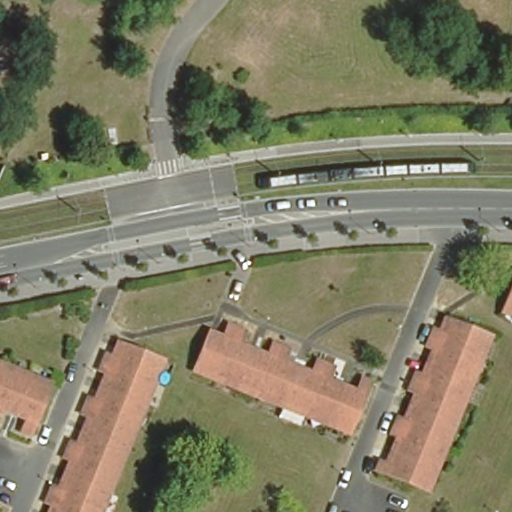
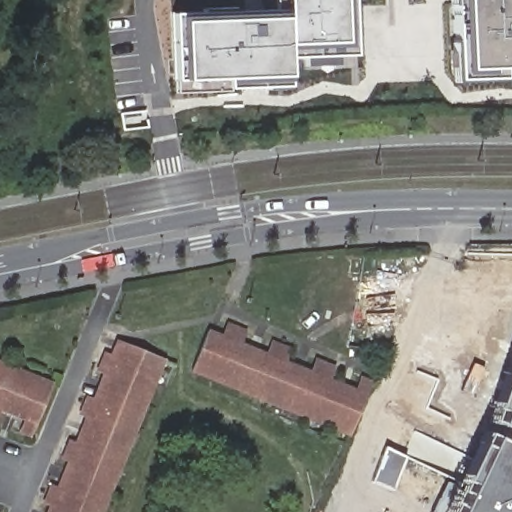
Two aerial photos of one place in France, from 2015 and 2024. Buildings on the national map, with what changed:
new [(293,55),(293,77),(173,79),(173,15),(285,12),(285,0),(354,0),(355,54),(293,55)]
new [(454,0),(512,0),(512,72),(456,74),(454,0)]
demolished [(512,286),(512,315),(502,310),(512,286)]
demolished [(448,427),(440,446),(431,467),(421,491),(386,476),(374,471),(378,461),(385,464),(390,466),(401,441),(396,439),(388,435),(395,417),(403,421),(408,423),(416,404),(419,397),(414,395),(406,392),(415,372),(422,375),(427,377),(437,352),(432,350),(424,347),(432,328),(440,331),(445,333),(451,319),(487,334),(478,356),(468,380),(458,404),(448,427)]
unchanged [(300,418),(277,409),(254,400),(232,391),(209,382),(188,373),(189,369),(205,331),(206,327),(220,332),(223,325),(241,332),(238,339),(265,350),(268,342),(285,349),(282,357),(308,367),(312,359),(330,367),(327,374),(352,385),(355,377),(359,379),(368,382),(347,433),(346,437),(337,433),(321,427),(300,418)]
unchanged [(46,504),(39,502),(47,483),(54,486),(64,461),(57,458),(64,440),(71,443),(82,418),(75,415),(83,395),(90,398),(99,375),(92,372),(100,352),(107,355),(113,341),(118,342),(156,359),(162,361),(155,380),(145,402),(135,427),(126,450),(117,472),(107,495),(100,512),(43,512),(46,504)]
new [(498,438),(502,427),(488,421),(512,353),(512,499),(511,498),(505,512),(446,512),(483,432),(498,438)]
unchanged [(20,431),(24,420),(0,410),(0,360),(8,363),(33,373),(44,377),(53,381),(51,386),(31,435),(21,431),(20,431)]
new [(394,492),(370,482),(384,449),(406,458),(394,492)]

